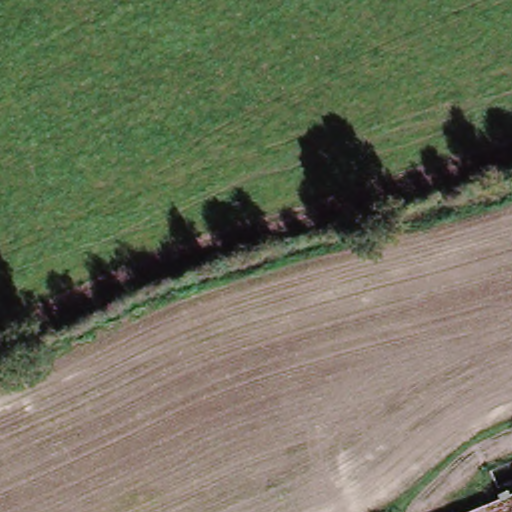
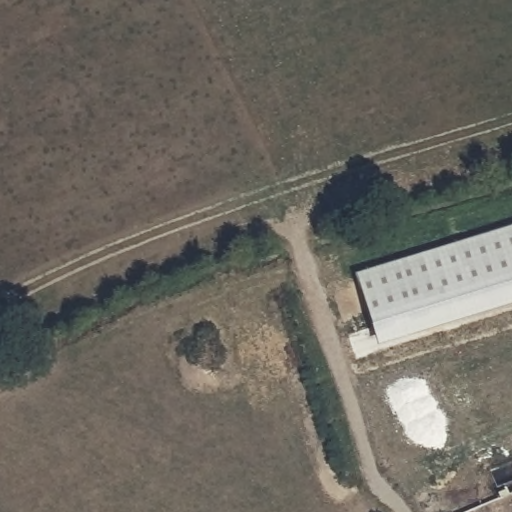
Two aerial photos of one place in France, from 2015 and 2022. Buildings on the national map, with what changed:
new [(380,347),(354,273),(512,225),(512,307),(380,347)]

